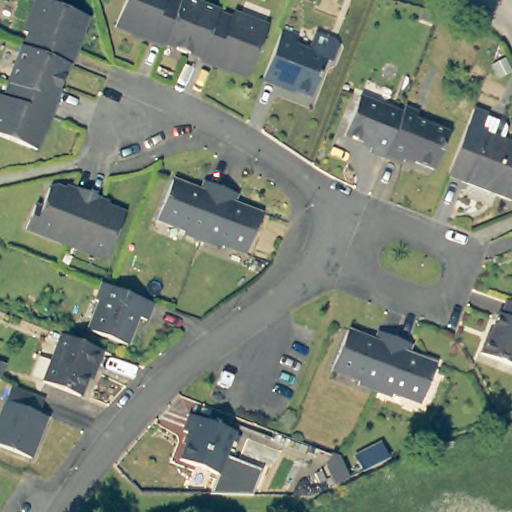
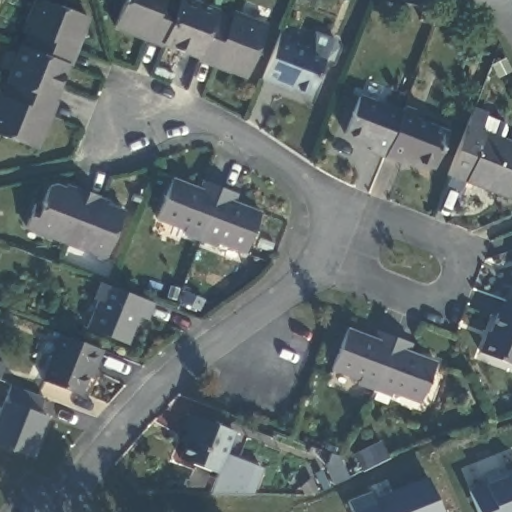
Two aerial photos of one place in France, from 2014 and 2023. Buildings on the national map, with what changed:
unchanged [(19,45),(23,47),(25,42),(30,29),(23,26),(32,0),(47,0),(86,14),(74,46),(66,43),(61,57),(70,60),(61,82),(53,80),(49,90),(8,75),(19,45)]
unchanged [(196,47),(184,42),(181,50),(157,40),(160,32),(146,28),(145,35),(126,28),(111,23),(121,0),(187,0),(219,12),(203,51),(200,58),(193,54),(196,47)]
unchanged [(219,12),(226,14),(228,10),(265,24),(245,75),(209,61),(211,54),(203,51),(219,12)]
unchanged [(294,48),(308,53),(315,35),(333,43),(336,49),(331,63),(324,61),(310,98),(279,86),(278,88),(262,82),(282,31),(298,37),(294,48)]
unchanged [(56,93),(54,100),(47,97),(41,112),(49,115),(37,146),(0,132),(0,97),(4,98),(9,81),(6,79),(8,75),(49,90),(56,93)]
unchanged [(384,156),(368,149),(371,142),(344,132),(357,97),(400,114),(384,156)]
unchanged [(400,114),(404,105),(416,110),(414,118),(445,131),(431,168),(402,156),(399,163),(384,156),(400,114)]
unchanged [(447,179),(467,128),(473,112),(487,117),(486,120),(504,126),(507,132),(503,142),(512,146),(512,204),(447,179)]
unchanged [(180,232),(182,228),(155,217),(168,183),(183,189),(185,184),(199,189),(203,179),(220,186),(199,240),(180,232)]
unchanged [(109,259),(72,246),(27,228),(36,203),(41,205),(48,189),(58,188),(69,192),(72,184),(113,199),(110,208),(126,214),(109,259)]
unchanged [(220,186),(235,192),(232,201),(246,207),(244,213),(258,218),(245,253),(217,241),(214,246),(199,240),(220,186)]
unchanged [(116,285),(156,300),(151,318),(142,315),(136,330),(131,328),(126,342),(91,328),(101,300),(98,298),(105,280),(116,285)]
unchanged [(485,346),(501,305),(504,306),(508,295),(512,297),(512,356),(485,346)]
unchanged [(358,383),(360,378),(332,368),(345,333),(359,339),(362,334),(375,339),(379,330),(395,337),(374,390),(358,383)]
unchanged [(101,347),(95,365),(91,363),(80,393),(41,378),(59,331),(101,347)]
unchanged [(395,337),(412,343),(409,352),(421,357),(419,362),(433,368),(420,402),(394,391),(391,397),(374,390),(395,337)]
unchanged [(3,379),(0,378),(0,365),(7,367),(3,379)]
unchanged [(38,411),(46,414),(30,455),(0,444),(0,410),(10,382),(44,396),(38,411)]
unchanged [(231,428),(222,451),(259,465),(250,490),(213,476),(214,472),(177,457),(187,432),(178,428),(186,410),(231,428)]
unchanged [(387,458),(364,469),(357,455),(381,444),(387,458)]
unchanged [(340,466),(347,477),(332,484),(318,459),(330,452),(340,466)]
new [(477,512),(469,490),(512,475),(512,512),(477,512)]
new [(370,491),(373,496),(428,476),(441,512),(351,512),(346,499),(370,491)]

